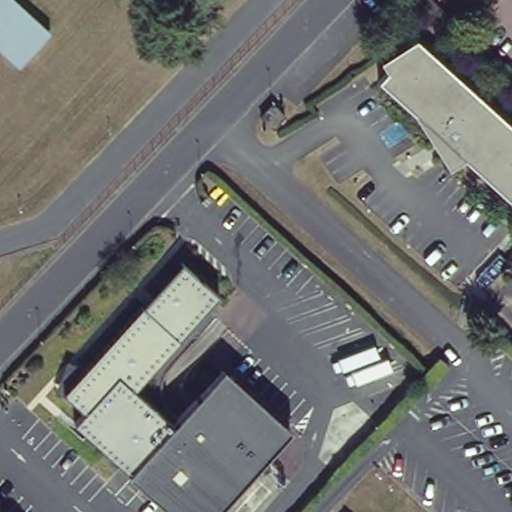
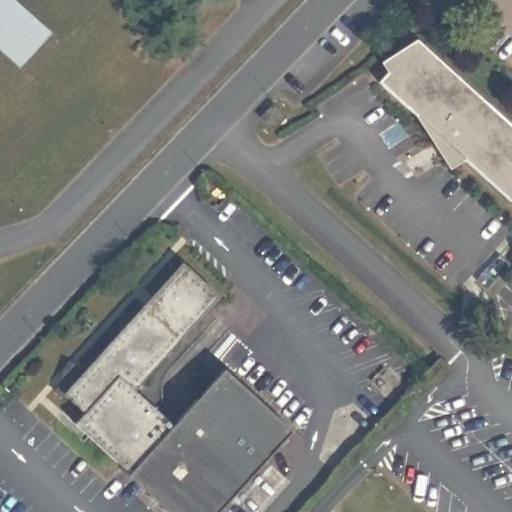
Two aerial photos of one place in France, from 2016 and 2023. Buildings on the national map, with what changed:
unchanged [(18,68),(0,52),(0,0),(15,0),(52,34),(18,68)]
unchanged [(431,140),(419,120),(377,81),(386,71),(380,62),(416,40),(512,126),(512,200),(510,202),(464,160),(450,169),(446,162),(431,140)]
unchanged [(285,117),(273,129),(260,117),(272,105),(285,117)]
unchanged [(499,254),(510,263),(487,290),(475,280),(499,254)]
unchanged [(133,390),(170,424),(172,425),(129,472),(128,473),(74,423),(84,412),(62,393),(181,262),(219,296),(133,390)]
unchanged [(170,424),(173,421),(221,367),(292,430),(218,512),(170,512),(129,472),(172,425),(170,424)]

